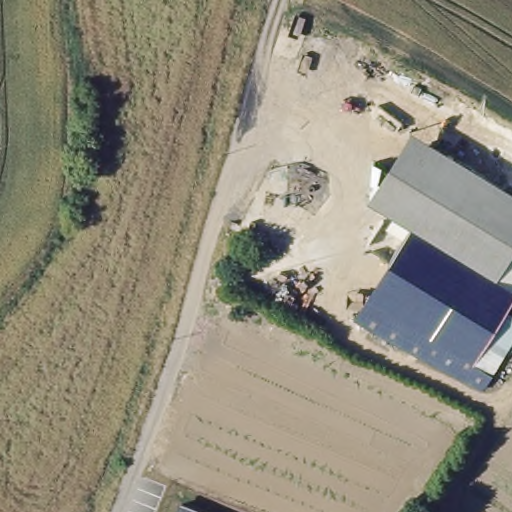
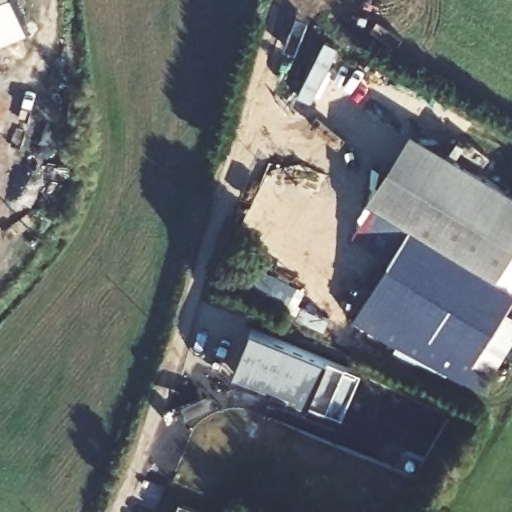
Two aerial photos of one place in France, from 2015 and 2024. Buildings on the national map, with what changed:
new [(40,46),(0,63),(0,0),(19,0),(40,46)]
unchanged [(437,235),(419,223),(416,221),(373,194),(417,126),(512,190),(512,285),(437,235)]
new [(353,236),(378,197),(416,221),(391,260),(353,236)]
unchanged [(416,221),(419,223),(437,235),(380,322),(359,309),(416,221)]
unchanged [(380,322),(437,235),(512,285),(512,300),(507,308),(465,377),(380,322)]
unchanged [(507,308),(512,311),(512,338),(482,387),(471,380),(465,377),(507,308)]
new [(251,330),(327,362),(360,376),(342,420),(307,408),(232,376),(251,330)]
unchanged [(171,512),(177,498),(208,512),(171,512)]

